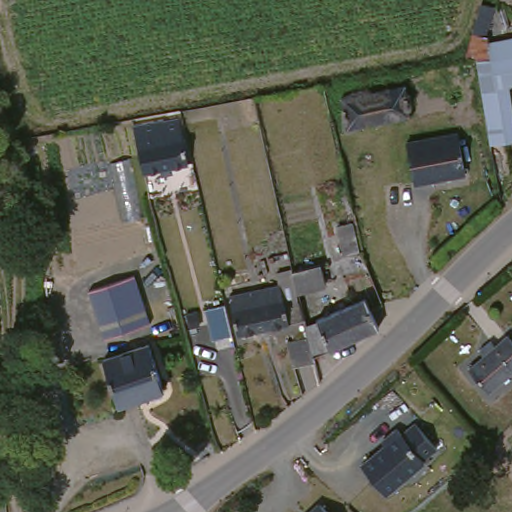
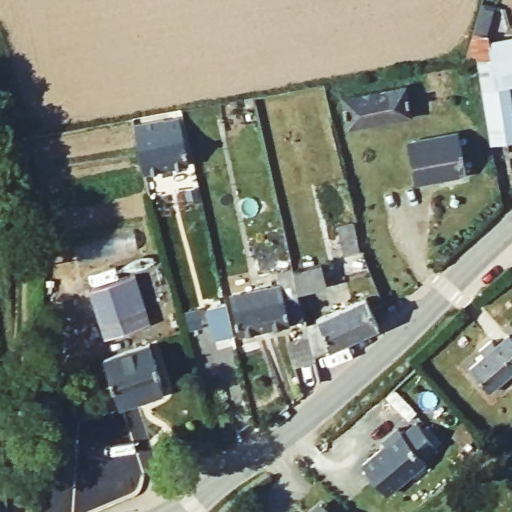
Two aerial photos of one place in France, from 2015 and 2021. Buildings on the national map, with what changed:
unchanged [(461,49),(512,33),(512,100),(505,103),(512,129),(512,136),(510,136),(494,141),(461,49)]
unchanged [(357,100),(410,90),(415,122),(345,135),(332,95),(355,90),(357,100)]
unchanged [(132,131),(160,130),(162,139),(175,139),(181,168),(144,173),(132,131)]
unchanged [(470,174),(416,186),(407,146),(455,135),(470,174)]
unchanged [(227,302),(267,290),(265,278),(283,275),(319,267),(323,290),(289,300),(295,325),(239,337),(227,302)]
unchanged [(98,339),(87,293),(134,278),(147,325),(98,339)]
unchanged [(324,356),(304,315),(347,295),(342,284),(354,278),(378,332),(324,356)]
unchanged [(227,338),(207,341),(202,312),(220,310),(227,338)]
unchanged [(506,338),(512,345),(512,375),(490,393),(469,368),(506,338)]
unchanged [(310,367),(291,371),(287,346),(305,342),(310,367)]
unchanged [(172,394),(124,405),(106,408),(94,363),(112,359),(159,348),(172,394)]
unchanged [(360,465),(382,446),(378,441),(396,426),(401,433),(416,421),(437,448),(423,460),(425,463),(386,495),(360,465)]
unchanged [(328,512),(308,512),(318,502),(328,512)]

